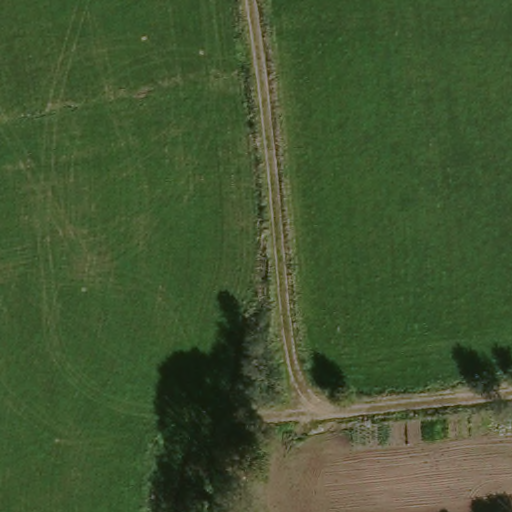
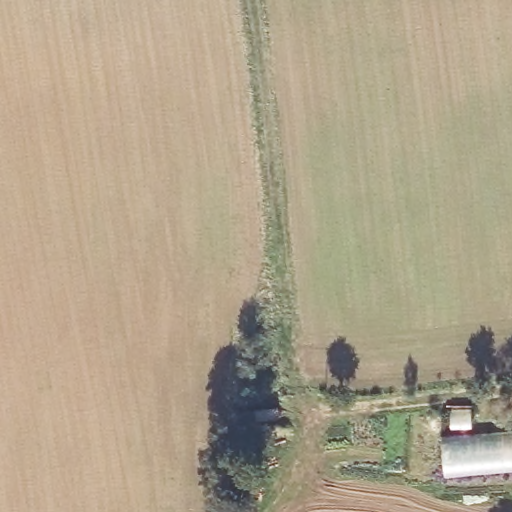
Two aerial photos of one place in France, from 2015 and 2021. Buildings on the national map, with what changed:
new [(444,473),(441,438),(512,432),(512,468),(444,473)]

